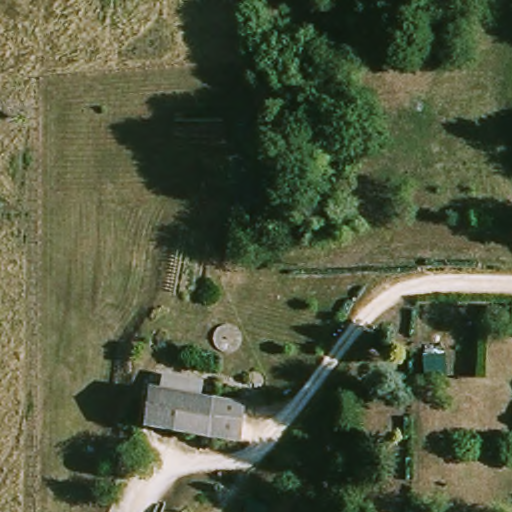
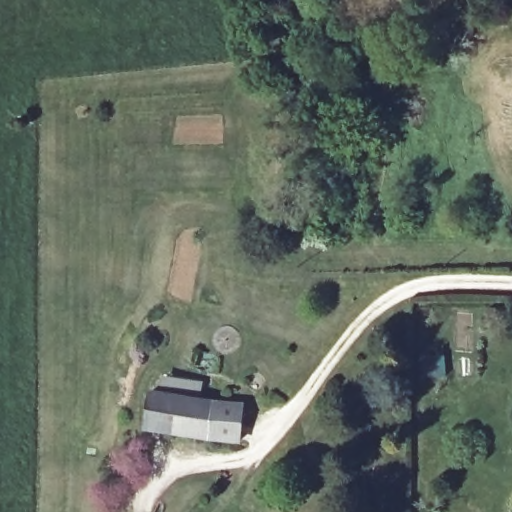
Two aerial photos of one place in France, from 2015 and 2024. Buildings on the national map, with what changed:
unchanged [(458,335),(459,390),(436,389),(433,335),(458,335)]
unchanged [(201,433),(141,427),(145,387),(205,395),(201,433)]
unchanged [(205,395),(240,399),(237,436),(201,433),(205,395)]

